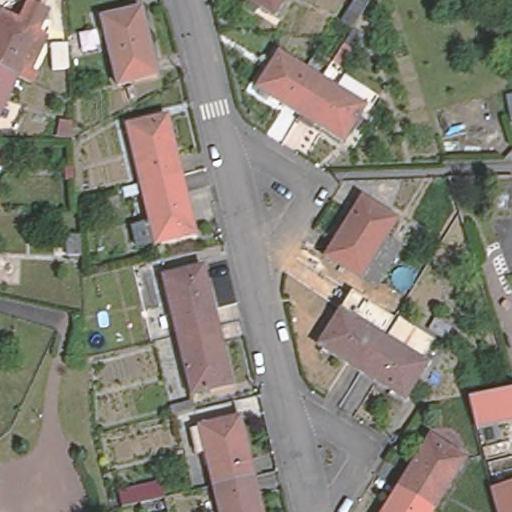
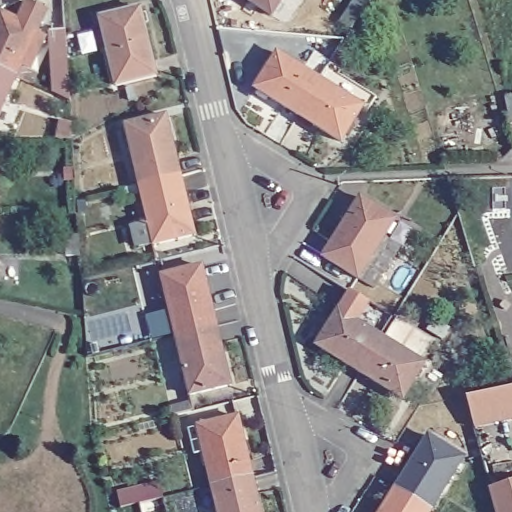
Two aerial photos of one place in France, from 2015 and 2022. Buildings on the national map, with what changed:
unchanged [(227,1),(228,0),(278,0),(264,24),(227,1)]
unchanged [(351,32),(340,25),(354,0),(359,0),(367,5),(351,32)]
unchanged [(18,76),(0,68),(0,12),(0,11),(19,20),(23,13),(28,2),(48,12),(39,29),(36,36),(43,40),(30,68),(23,64),(18,76)]
unchanged [(139,8),(156,77),(113,87),(97,19),(139,8)]
unchanged [(65,43),(67,69),(51,70),(50,44),(65,43)]
unchanged [(352,53),(341,71),(331,65),(341,47),(352,53)]
unchanged [(246,91),(269,53),(311,80),(289,117),(246,91)]
unchanged [(0,113),(0,68),(18,76),(0,113)]
unchanged [(371,108),(344,152),(332,144),(289,117),(311,80),(324,87),(329,82),(371,108)]
unchanged [(512,94),(512,122),(511,122),(505,95),(512,94)]
unchanged [(152,247),(139,196),(121,200),(119,192),(138,188),(123,128),(166,118),(179,177),(193,237),(152,247)]
unchanged [(70,127),(71,142),(59,142),(59,126),(70,127)]
unchanged [(394,224),(383,240),(356,283),(319,260),(356,200),(394,224)]
unchanged [(78,240),(78,259),(64,260),(63,241),(78,240)]
unchanged [(400,251),(373,293),(356,283),(383,240),(400,251)]
unchanged [(160,278),(201,268),(216,329),(174,339),(160,278)]
unchanged [(317,352),(341,315),(384,342),(361,380),(317,352)]
unchanged [(396,324),(398,321),(436,345),(423,366),(384,342),(396,324)]
unchanged [(216,329),(231,388),(188,398),(174,339),(216,329)]
unchanged [(423,366),(427,369),(404,407),(361,380),(384,342),(423,366)]
unchanged [(510,390),(512,389),(512,423),(474,431),(466,398),(510,390)]
unchanged [(238,418),(252,478),(210,488),(196,428),(238,418)]
unchanged [(457,466),(429,512),(415,512),(388,496),(420,443),(457,466)]
unchanged [(252,478),(260,512),(216,512),(210,488),(252,478)]
unchanged [(490,488),(512,482),(512,512),(497,512),(490,488)]
unchanged [(136,506),(118,510),(115,495),(138,489),(156,485),(159,500),(162,512),(138,512),(136,506)]
unchanged [(415,512),(378,512),(388,496),(415,512)]

